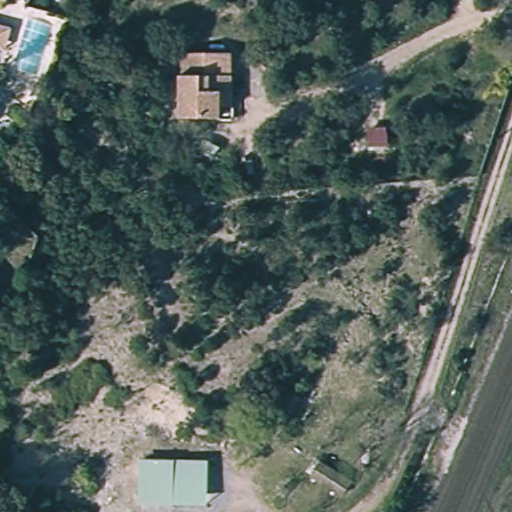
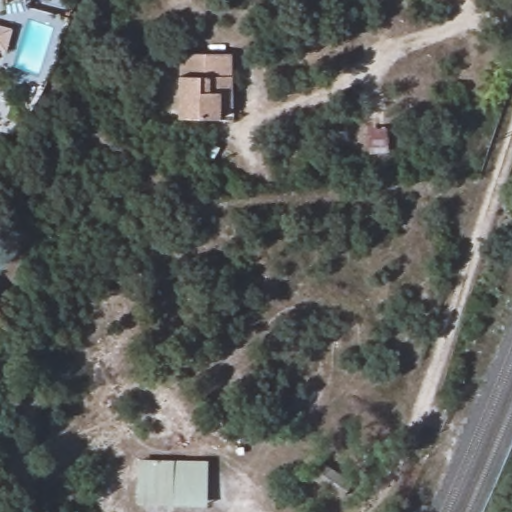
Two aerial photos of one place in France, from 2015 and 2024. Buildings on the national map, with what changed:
unchanged [(0,4),(0,0),(20,0),(0,4)]
unchanged [(231,107),(222,107),(222,119),(181,118),(181,54),(232,54),(231,107)]
unchanged [(278,438),(256,427),(268,407),(288,418),(278,438)]
unchanged [(208,463),(208,503),(138,502),(138,462),(208,463)]

